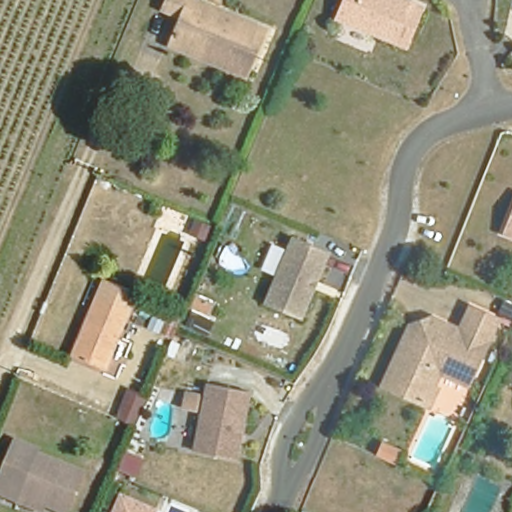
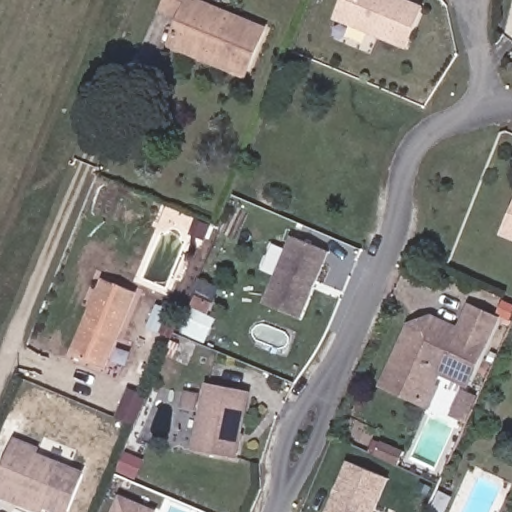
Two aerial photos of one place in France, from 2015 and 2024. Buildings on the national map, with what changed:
unchanged [(197,55),(171,44),(182,18),(163,10),(167,0),(199,0),(198,2),(266,30),(248,71),(246,76),(197,55)]
unchanged [(334,0),(401,0),(416,7),(399,45),(327,15),(334,0)]
unchanged [(499,234),(512,199),(512,239),(499,234)]
unchanged [(196,221),(209,227),(204,240),(190,234),(196,221)]
unchanged [(294,238),(331,253),(301,320),(265,305),(294,238)]
unchanged [(100,358),(68,344),(88,297),(99,269),(110,274),(132,282),(100,358)]
unchanged [(423,402),(413,398),(377,382),(405,321),(414,324),(421,321),(424,314),(454,326),(465,303),(493,314),(464,379),(428,364),(422,380),(431,384),(423,402)]
unchanged [(173,337),(162,331),(150,327),(159,304),(171,309),(182,314),(175,333),(173,337)]
unchanged [(244,390),(231,458),(218,455),(212,455),(188,450),(201,382),(244,390)]
new [(466,424),(449,416),(461,390),(478,398),(466,424)]
unchanged [(127,392),(146,399),(135,427),(116,419),(127,392)]
unchanged [(0,494),(0,486),(13,455),(21,436),(43,445),(39,455),(83,474),(67,512),(62,512),(46,506),(43,512),(42,512),(18,502),(0,494)]
unchanged [(127,453),(141,459),(134,476),(120,470),(127,453)]
new [(325,512),(347,461),(390,479),(376,512),(325,512)]
unchanged [(156,508),(154,512),(113,512),(121,493),(156,508)]

